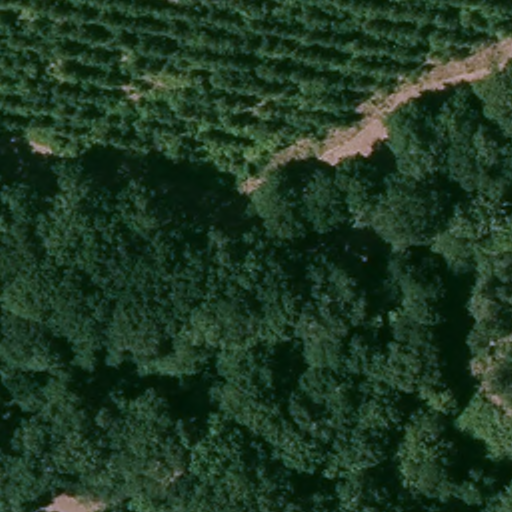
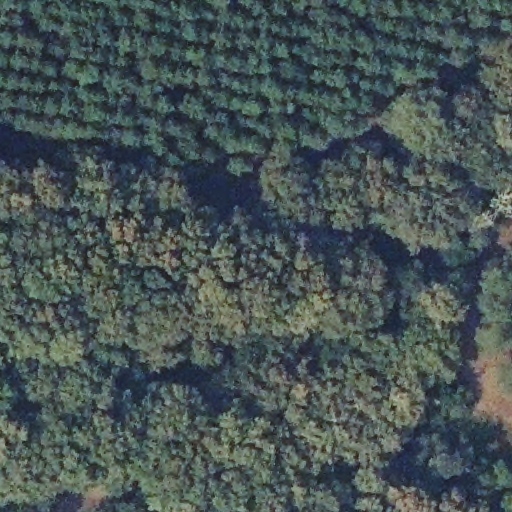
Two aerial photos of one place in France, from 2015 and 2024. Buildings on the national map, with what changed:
[]

